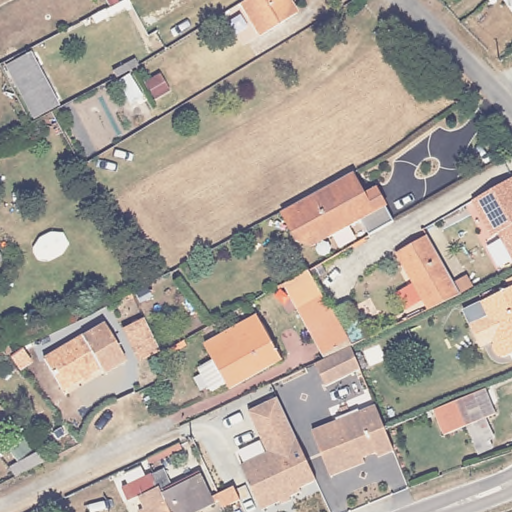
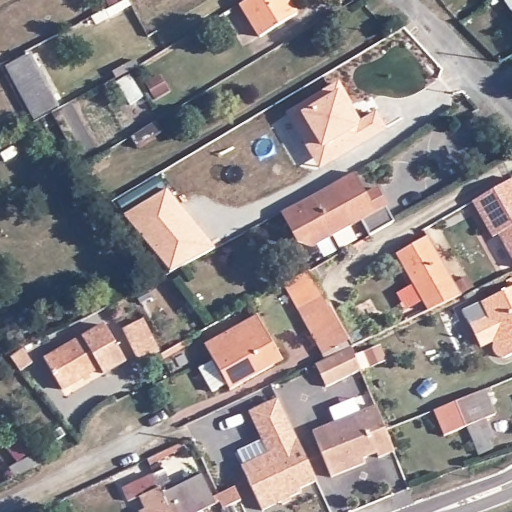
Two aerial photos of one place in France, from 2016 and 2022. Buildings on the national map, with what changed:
unchanged [(261,39),(242,6),(252,0),(288,0),(299,17),(261,39)]
unchanged [(106,15),(129,4),(132,9),(109,20),(106,15)]
unchanged [(103,67),(125,55),(129,61),(107,74),(103,67)]
unchanged [(35,57),(58,104),(36,115),(12,69),(35,57)]
new [(337,80),(359,120),(378,109),(388,127),(318,168),(285,111),(337,80)]
unchanged [(355,172),(366,195),(380,187),(396,220),(370,234),(362,220),(331,235),(323,217),(296,231),(286,210),(320,193),(355,172)]
unchanged [(491,235),(472,199),(512,177),(512,259),(497,232),(491,235)]
new [(167,187),(216,247),(169,271),(123,214),(167,187)]
new [(304,227),(323,217),(331,235),(313,246),(301,241),(296,231),(304,227)]
unchanged [(464,292),(452,297),(419,312),(388,255),(421,238),(447,287),(459,282),(464,292)]
unchanged [(311,272),(348,337),(323,350),(286,285),(311,272)]
unchanged [(512,353),(509,354),(504,355),(501,355),(496,352),(494,347),(494,343),(495,340),(498,337),(500,336),(484,300),(512,287),(512,353)]
unchanged [(144,320),(157,352),(135,360),(122,328),(144,320)]
unchanged [(285,365),(230,391),(226,382),(213,389),(202,367),(215,361),(208,346),(263,320),(285,365)]
new [(93,359),(80,337),(104,322),(126,360),(101,372),(97,367),(93,359)]
unchanged [(97,367),(58,390),(41,360),(80,337),(97,367)]
demolished [(107,371),(95,356),(99,353),(94,347),(101,342),(117,362),(107,371)]
unchanged [(354,352),(362,371),(326,386),(317,362),(353,348),(354,352)]
unchanged [(495,418),(444,437),(434,411),(485,391),(495,418)]
unchanged [(316,480),(299,487),(301,491),(261,509),(241,465),(268,452),(249,411),(278,397),(316,480)]
unchanged [(356,467),(332,477),(313,432),(377,407),(395,450),(395,452),(379,457),(378,453),(364,458),(366,463),(356,467)]
unchanged [(482,426),(493,454),(479,460),(469,431),(482,426)]
demolished [(0,465),(0,459),(4,463),(0,465)]
unchanged [(204,475),(219,503),(202,512),(174,512),(167,496),(204,475)]
unchanged [(174,512),(144,512),(150,510),(145,497),(125,505),(120,492),(154,478),(158,490),(163,488),(167,496),(174,512)]
unchanged [(227,508),(230,512),(220,512),(227,508)]

